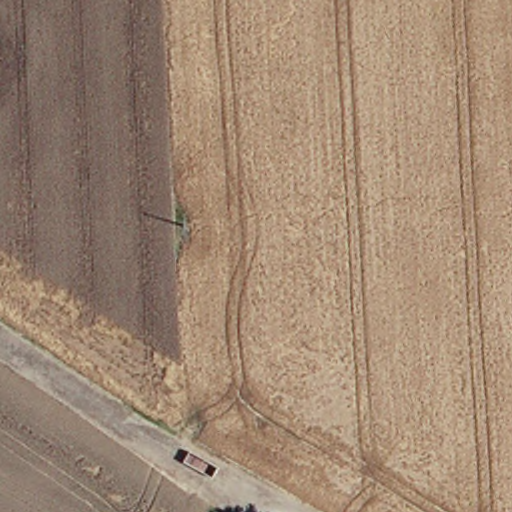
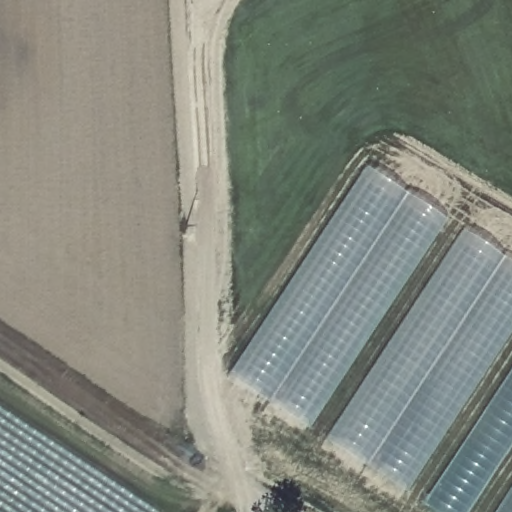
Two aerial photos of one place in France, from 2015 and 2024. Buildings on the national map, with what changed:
new [(305,430),(226,375),(363,165),(445,220),(305,430)]
new [(404,492),(323,440),(460,230),(512,264),(512,327),(404,492)]
new [(466,512),(432,512),(420,504),(512,365),(512,442),(466,512)]
new [(512,486),(512,512),(495,512),(512,486)]

